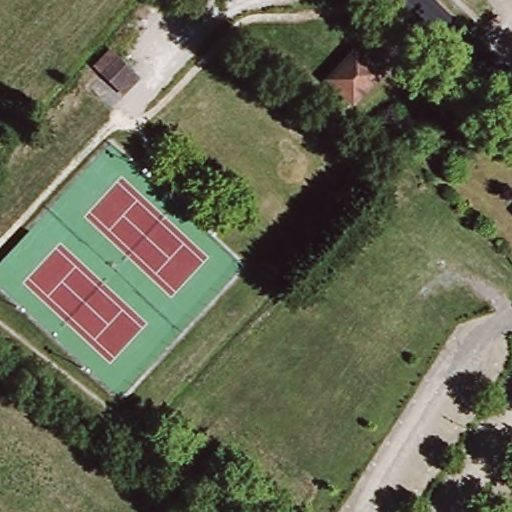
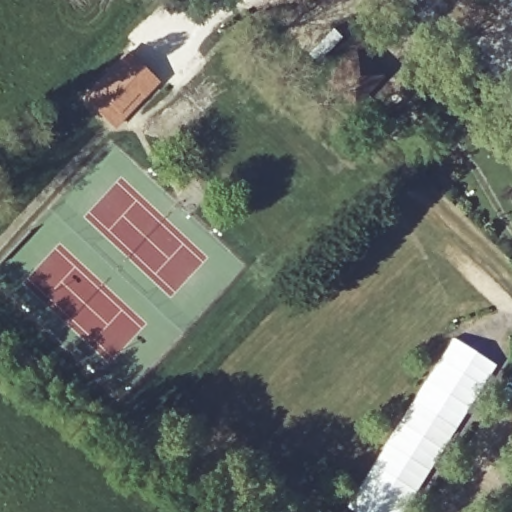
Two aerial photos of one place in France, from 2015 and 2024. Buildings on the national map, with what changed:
unchanged [(336,72),(362,44),(389,68),(364,96),(336,72)]
unchanged [(121,98),(92,72),(107,55),(141,81),(121,98)]
new [(414,397),(453,336),(497,365),(450,438),(406,512),(353,512),(346,507),(414,397)]

